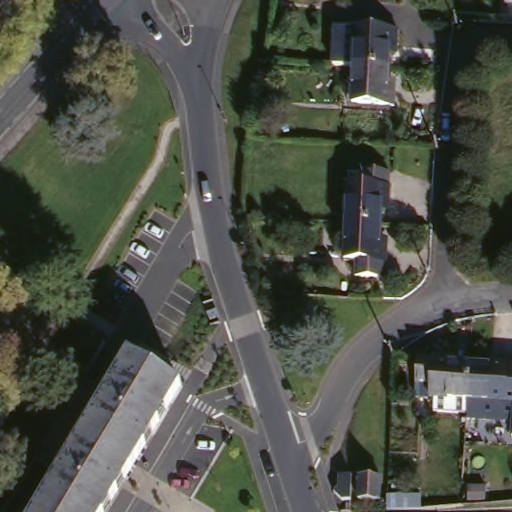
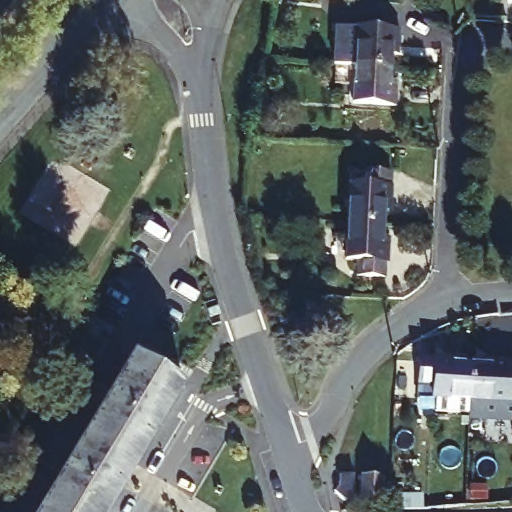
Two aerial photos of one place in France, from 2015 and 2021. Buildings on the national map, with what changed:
unchanged [(510,0),(512,0),(512,2),(510,2),(510,0)]
unchanged [(354,26),(396,30),(395,48),(389,48),(389,65),(353,64),(354,26)]
unchanged [(389,65),(388,84),(394,84),(393,102),(352,101),(353,64),(389,65)]
unchanged [(352,174),(393,175),(391,190),(395,190),(393,207),(386,207),(385,226),(350,224),(352,174)]
unchanged [(385,226),(384,245),(390,245),(390,263),(388,263),(387,281),(360,280),(361,265),(348,263),(350,224),(385,226)]
unchanged [(427,395),(428,383),(413,382),(414,356),(429,357),(428,354),(448,355),(447,361),(465,362),(463,397),(427,395)]
unchanged [(128,355),(181,386),(105,512),(35,512),(128,355)]
unchanged [(463,397),(465,362),(483,363),(483,357),(502,359),(502,361),(512,361),(512,399),(500,399),(463,397)]
unchanged [(334,475),(348,476),(346,501),(337,500),(329,491),(333,487),(334,475)]
unchanged [(375,480),(374,502),(353,501),(355,478),(375,480)]

